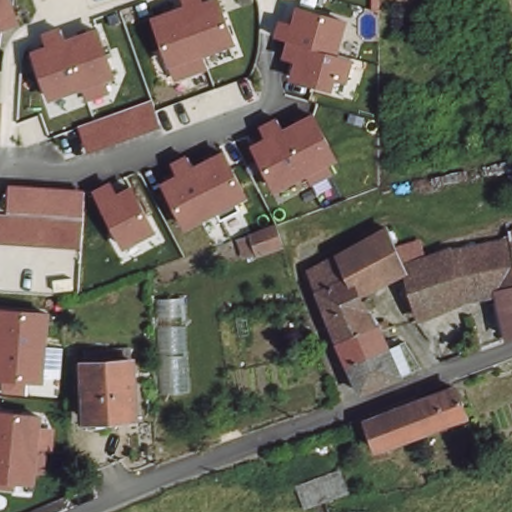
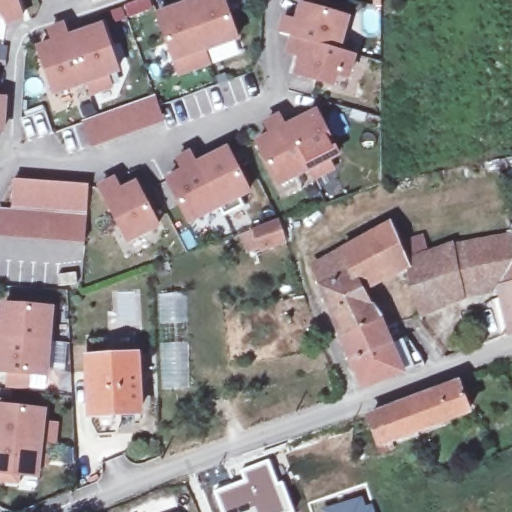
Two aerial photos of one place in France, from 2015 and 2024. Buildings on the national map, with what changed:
unchanged [(6,29),(1,16),(0,17),(0,0),(15,0),(23,24),(6,29)]
unchanged [(186,0),(222,0),(238,41),(206,52),(211,67),(178,77),(154,13),(187,2),(186,0)]
unchanged [(282,17),(293,21),(298,3),(351,21),(341,50),(358,55),(349,82),(339,78),(335,89),(294,75),(298,60),(286,55),(290,40),(278,31),(282,17)]
unchanged [(51,40),(48,30),(65,25),(70,34),(101,22),(118,73),(109,76),(114,90),(93,97),(88,85),(50,96),(35,45),(51,40)]
unchanged [(5,134),(0,134),(0,96),(5,97),(5,134)]
unchanged [(156,96),(166,123),(91,149),(81,124),(156,96)]
unchanged [(269,134),(261,122),(278,113),(284,124),(316,108),(339,156),(333,161),(338,172),(316,181),(311,172),(276,187),(253,141),(269,134)]
unchanged [(180,170),(174,159),(189,151),(196,161),(226,147),(249,194),(187,224),(165,179),(180,170)]
unchanged [(115,177),(122,187),(134,181),(159,226),(124,244),(97,187),(115,177)]
unchanged [(85,245),(0,238),(0,209),(10,209),(14,179),(88,185),(85,245)]
unchanged [(279,215),(287,236),(281,238),(264,245),(255,225),(279,215)]
unchanged [(384,232),(399,274),(353,299),(369,323),(338,339),(322,298),(311,270),(384,232)]
unchanged [(507,235),(512,233),(512,252),(509,242),(507,235)]
unchanged [(444,252),(509,242),(512,252),(512,337),(507,340),(492,294),(451,305),(414,318),(404,272),(403,270),(403,267),(444,252)]
unchanged [(58,308),(51,379),(31,377),(31,390),(6,388),(6,375),(0,375),(0,306),(0,302),(58,308)]
unchanged [(338,339),(369,323),(378,338),(385,353),(349,368),(338,339)]
unchanged [(385,353),(394,372),(414,363),(421,373),(399,383),(397,379),(359,394),(349,368),(385,353)]
unchanged [(134,367),(138,367),(141,422),(89,425),(83,370),(88,370),(88,357),(133,355),(134,367)]
unchanged [(467,412),(388,442),(389,450),(377,453),(369,420),(458,387),(467,412)]
unchanged [(46,423),(60,425),(56,467),(43,466),(43,476),(21,476),(20,485),(0,483),(0,406),(48,410),(46,423)]
new [(241,476),(238,467),(270,456),(283,480),(296,512),(221,512),(211,488),(241,476)]
demolished [(306,500),(300,481),(341,469),(348,486),(306,500)]
new [(364,492),(368,502),(371,500),(375,512),(321,512),(319,506),(364,492)]

